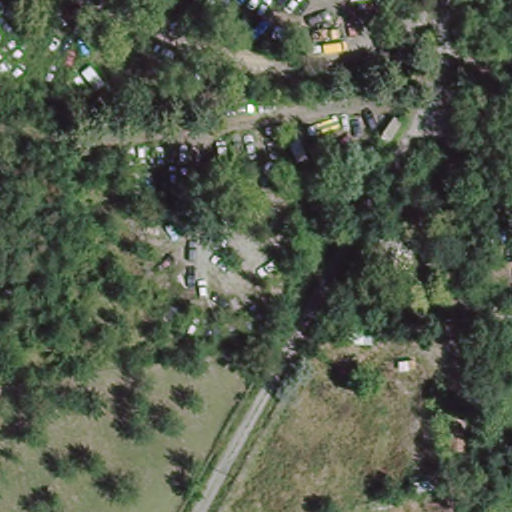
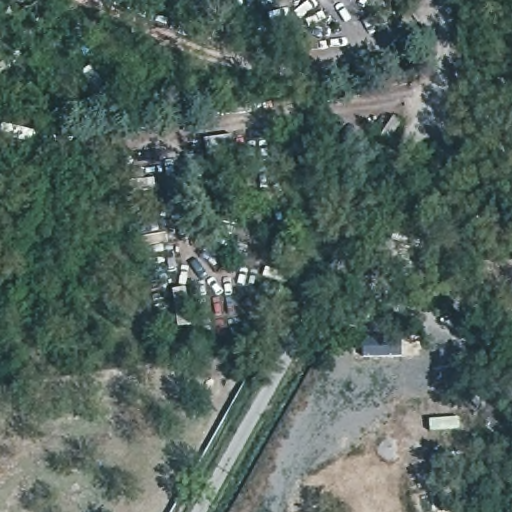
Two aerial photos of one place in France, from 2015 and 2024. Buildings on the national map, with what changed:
unchanged [(485,288),(483,260),(512,259),(512,287),(485,288)]

